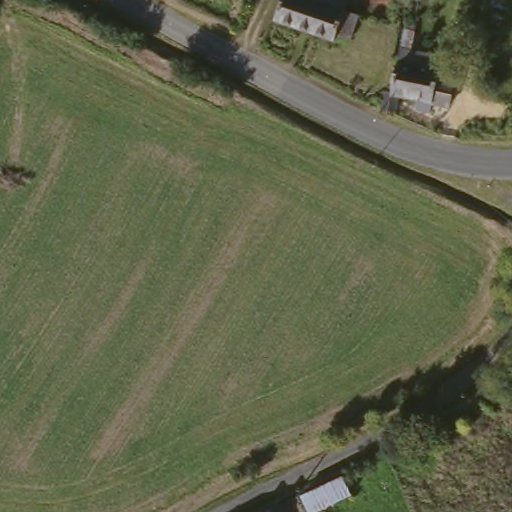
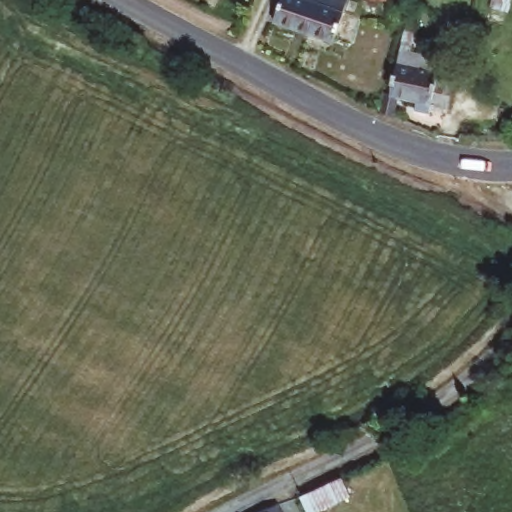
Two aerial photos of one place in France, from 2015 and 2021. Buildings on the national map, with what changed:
unchanged [(335,39),(277,19),(284,0),(349,0),(345,10),(360,15),(353,40),(337,35),(335,39)]
unchanged [(454,106),(404,95),(400,116),(386,109),(391,90),(396,91),(402,63),(406,48),(410,30),(421,32),(418,50),(447,56),(444,70),(461,75),(454,106)]
unchanged [(343,476),(351,494),(316,512),(311,512),(302,495),(343,476)]
unchanged [(278,502),(283,512),(259,512),(278,502)]

